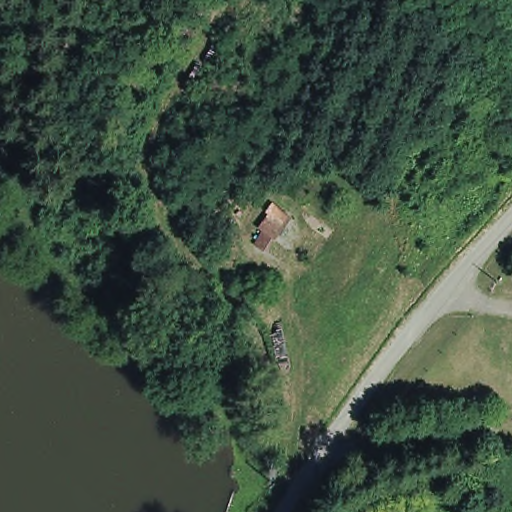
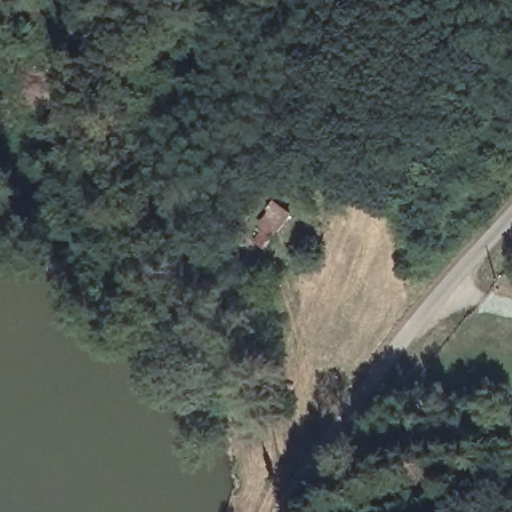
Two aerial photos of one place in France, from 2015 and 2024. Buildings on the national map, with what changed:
unchanged [(261,230),(269,235),(261,247),(253,242),(261,230)]

